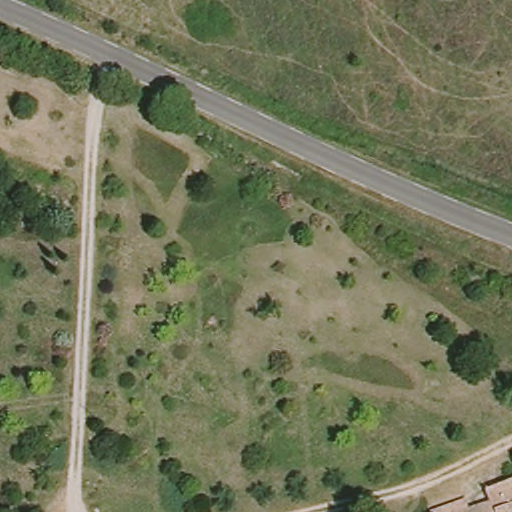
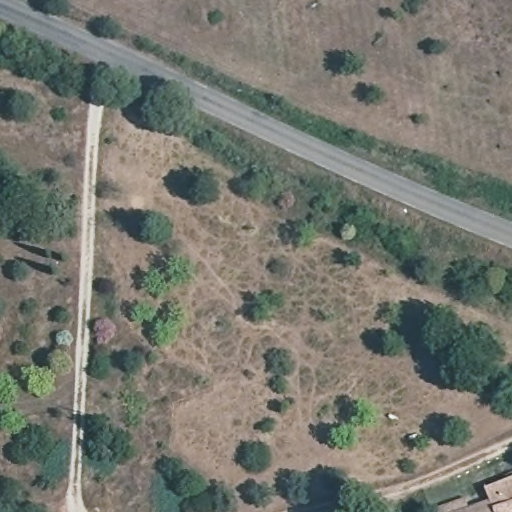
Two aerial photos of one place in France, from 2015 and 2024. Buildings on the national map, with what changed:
unchanged [(469,508),(487,502),(483,492),(512,480),(512,512),(430,512),(466,498),(469,508)]

